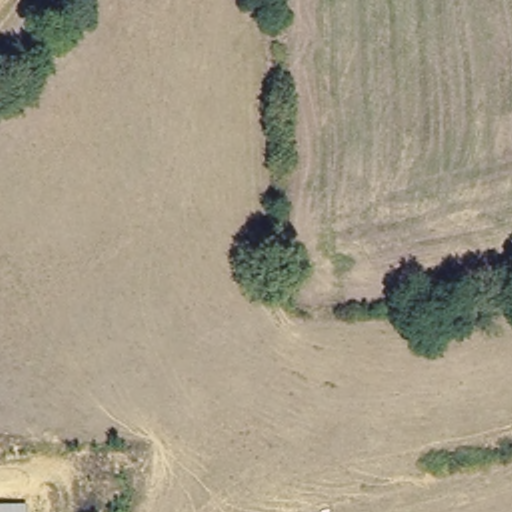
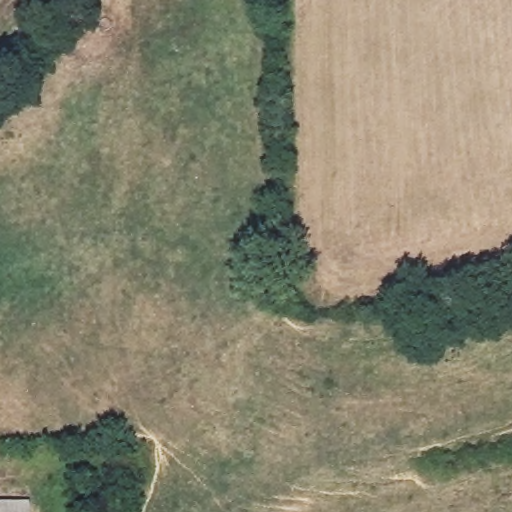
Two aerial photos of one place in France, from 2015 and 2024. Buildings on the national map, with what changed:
unchanged [(27,512),(0,512),(0,498),(25,496),(27,512)]

